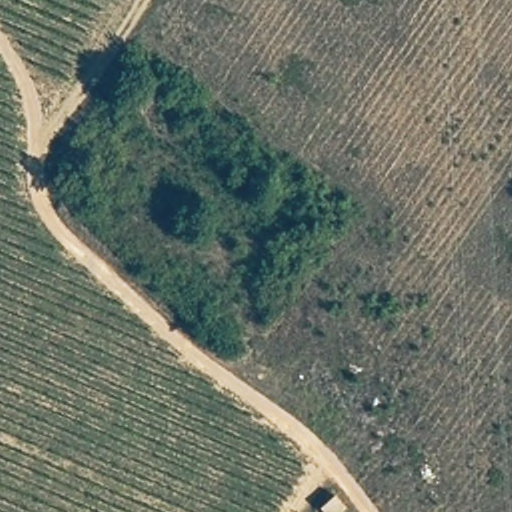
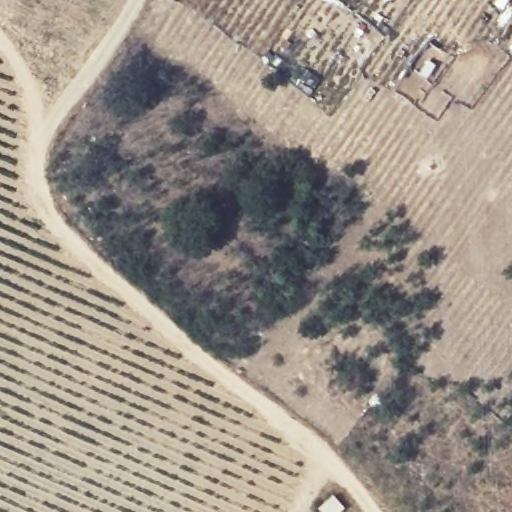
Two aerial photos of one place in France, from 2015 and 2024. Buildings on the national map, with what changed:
unchanged [(332,496),(342,509),(339,512),(320,512),(319,510),(332,496)]

